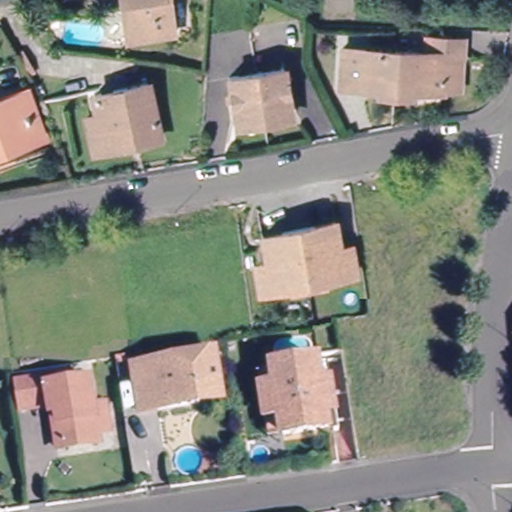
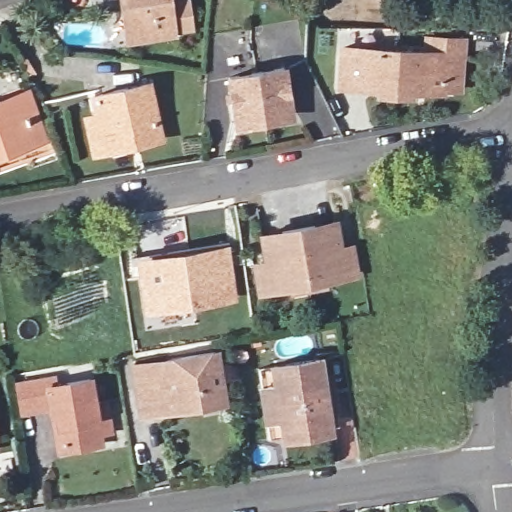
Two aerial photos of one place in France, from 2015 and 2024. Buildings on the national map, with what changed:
unchanged [(122,0),(165,0),(170,34),(127,39),(122,0)]
unchanged [(437,92),(334,86),(336,49),(416,53),(417,34),(459,36),(458,55),(456,94),(437,92)]
unchanged [(275,66),(282,110),(228,120),(220,76),(275,66)]
unchanged [(85,117),(97,115),(94,96),(148,86),(158,139),(104,149),(91,152),(85,117)]
unchanged [(25,122),(34,119),(41,141),(26,146),(0,155),(0,96),(14,92),(25,122)]
unchanged [(340,223),(340,232),(347,274),(275,285),(268,243),(266,235),(286,232),(320,227),(340,223)]
new [(235,298),(145,312),(135,259),(228,245),(235,298)]
unchanged [(311,347),(311,349),(310,350),(310,352),(308,353),(305,355),(297,356),(288,358),(281,359),(276,360),(274,360),(271,359),(270,357),(268,353),(269,349),(269,347),(270,346),(273,344),(277,342),(282,341),(286,340),(292,339),(297,339),(301,338),(305,338),(306,339),(309,341),(310,343),(311,345),(311,347)]
unchanged [(224,398),(201,402),(142,412),(141,408),(134,364),(216,350),(221,383),(223,393),(224,398)]
unchanged [(326,360),(329,378),(336,429),(326,430),(281,437),(273,385),(270,369),(315,362),(326,360)]
unchanged [(273,385),(281,437),(266,440),(258,387),(255,371),(270,369),(273,385)]
unchanged [(51,421),(50,416),(49,406),(21,411),(16,381),(46,376),(47,384),(89,377),(92,401),(105,399),(106,410),(110,430),(97,433),(99,440),(61,446),(55,446),(51,421)]

